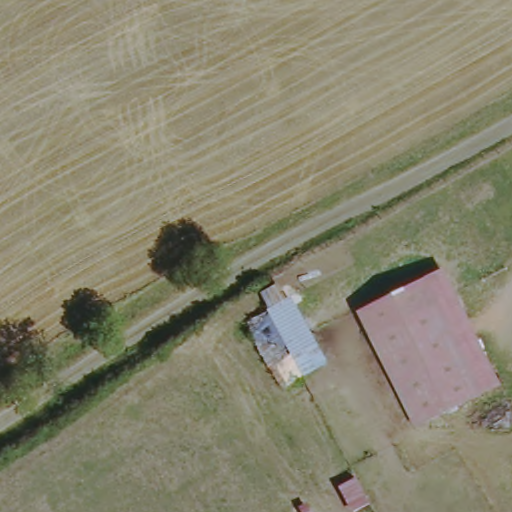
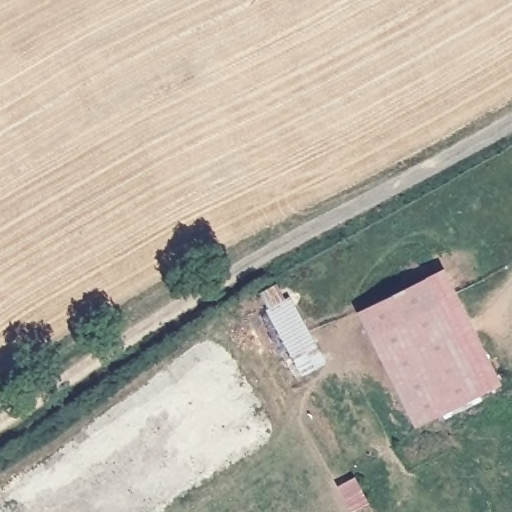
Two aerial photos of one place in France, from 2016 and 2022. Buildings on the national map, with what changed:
unchanged [(364,307),(443,266),(502,381),(422,425),(364,307)]
unchanged [(333,363),(307,378),(275,310),(265,290),(282,283),(290,300),(295,296),(333,363)]

